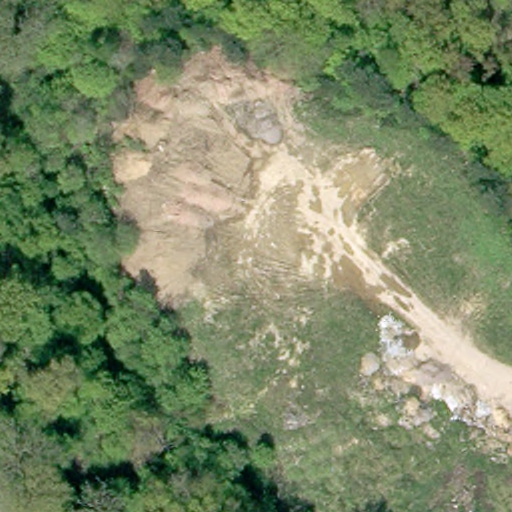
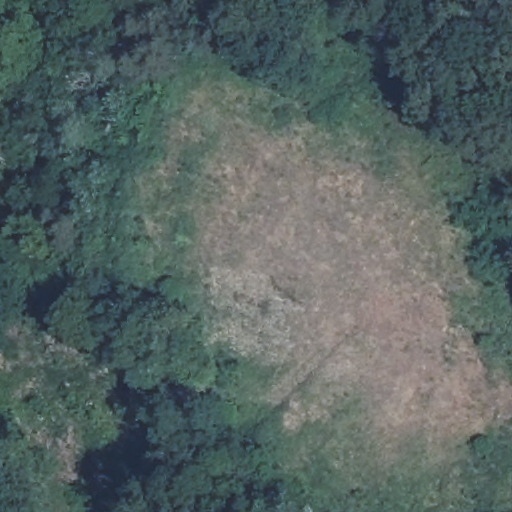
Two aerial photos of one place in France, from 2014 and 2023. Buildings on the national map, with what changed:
[]

